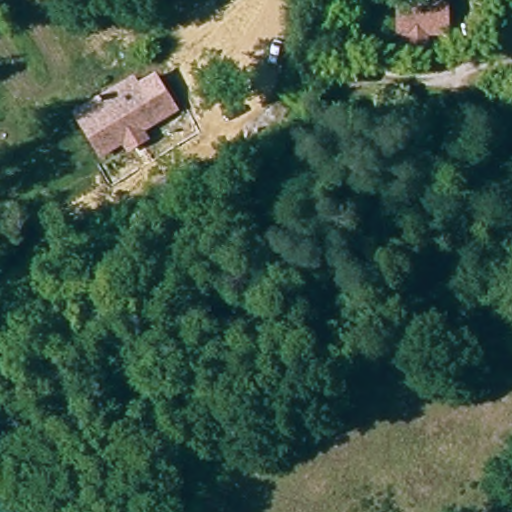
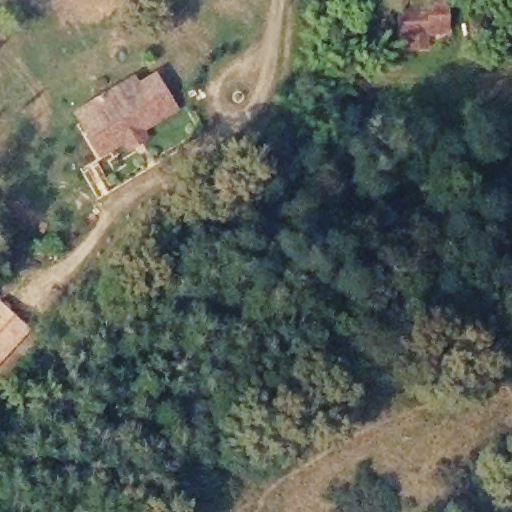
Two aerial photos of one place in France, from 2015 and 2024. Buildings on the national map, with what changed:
unchanged [(435,0),(437,34),(416,35),(416,49),(400,49),(399,19),(419,6),(418,2),(435,0)]
unchanged [(146,133),(150,139),(127,153),(122,146),(101,158),(72,110),(134,74),(140,85),(157,74),(180,110),(146,133)]
new [(0,365),(0,301),(31,331),(0,365)]

